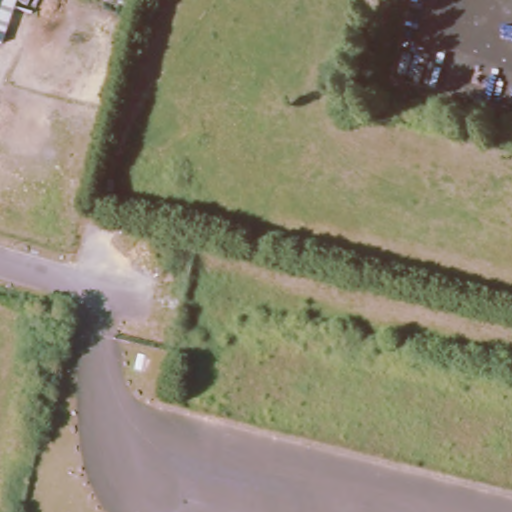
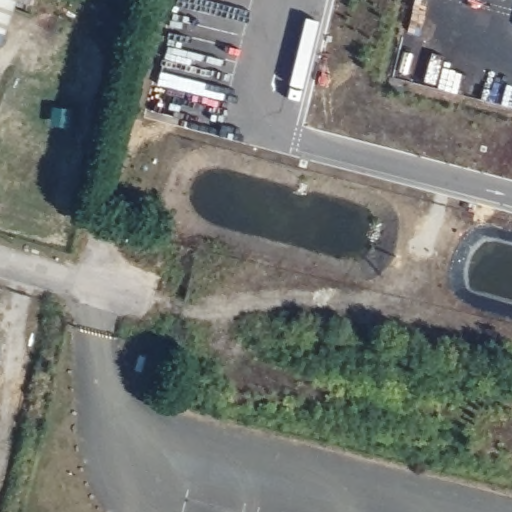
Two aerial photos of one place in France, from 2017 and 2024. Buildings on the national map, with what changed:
unchanged [(0,39),(0,0),(13,0),(0,39)]

